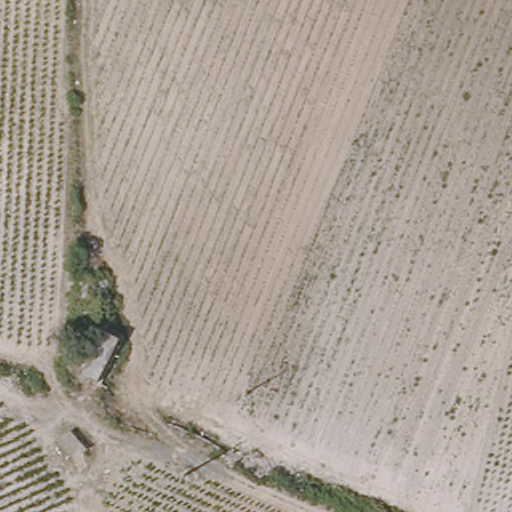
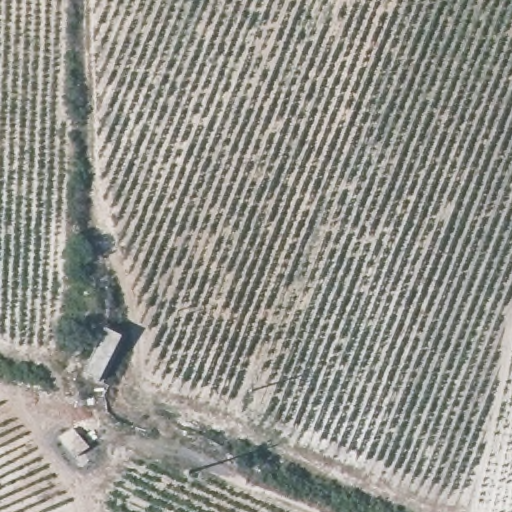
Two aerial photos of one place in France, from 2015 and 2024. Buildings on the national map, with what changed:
unchanged [(79,374),(98,325),(117,333),(98,381),(79,374)]
unchanged [(231,436),(236,418),(257,424),(251,442),(231,436)]
unchanged [(71,424),(83,449),(67,458),(55,434),(62,430),(71,424)]

